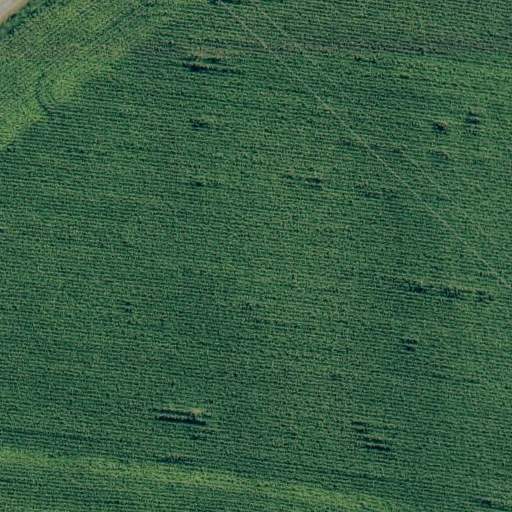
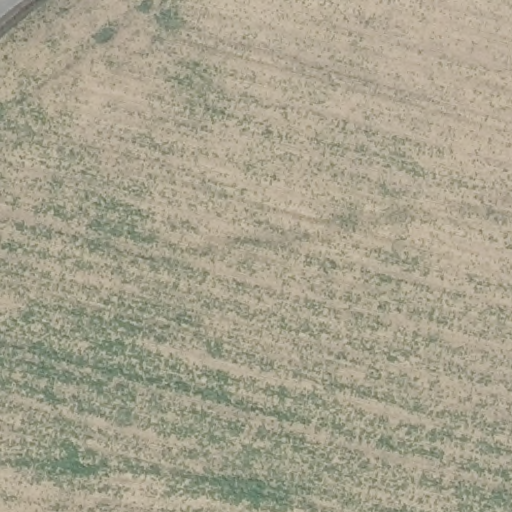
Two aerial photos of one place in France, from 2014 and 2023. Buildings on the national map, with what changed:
[]

